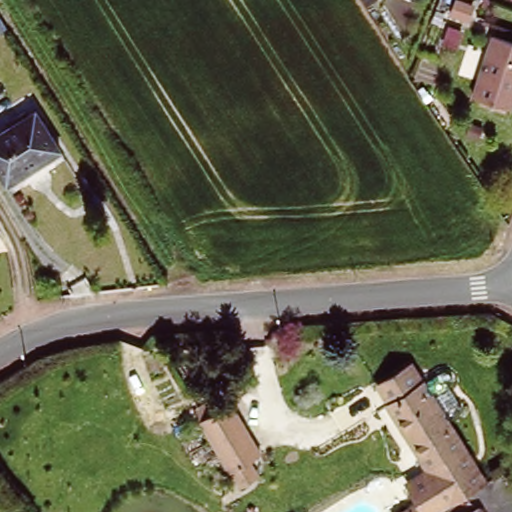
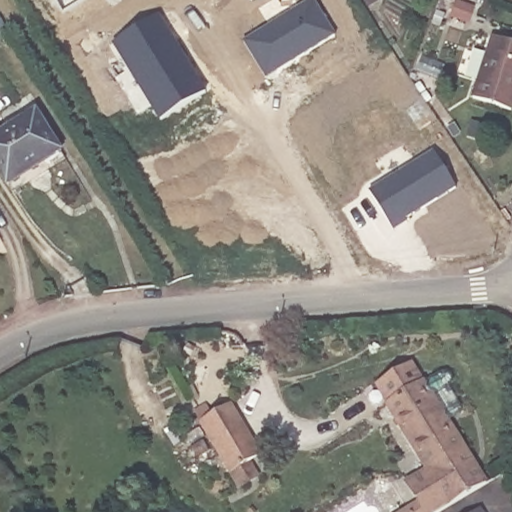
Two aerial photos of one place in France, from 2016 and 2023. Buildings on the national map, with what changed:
new [(266,78),(243,42),(310,0),(313,0),(336,35),(266,78)]
unchanged [(366,9),(360,0),(377,0),(378,1),(366,9)]
unchanged [(466,21),(451,15),(455,2),(471,7),(466,21)]
new [(158,16),(206,92),(161,120),(113,43),(158,16)]
unchanged [(509,111),(472,98),(492,37),(512,44),(512,100),(509,111)]
unchanged [(6,178),(0,168),(0,129),(35,107),(55,140),(58,146),(43,156),(6,178)]
unchanged [(492,132),(488,145),(475,140),(479,129),(492,132)]
new [(369,191),(434,151),(456,187),(406,218),(408,221),(394,230),(369,191)]
unchanged [(0,233),(1,235),(0,235),(0,233)]
unchanged [(408,479),(428,467),(389,402),(390,401),(378,380),(411,360),(423,379),(443,367),(447,367),(453,377),(449,383),(462,405),(460,411),(447,418),(485,479),(430,512),(395,512),(407,505),(419,498),(408,479)]
unchanged [(258,481),(243,488),(242,485),(235,473),(199,412),(203,410),(210,406),(216,415),(236,404),(252,432),(266,456),(254,462),(263,477),(258,481)]
unchanged [(479,505),(483,512),(467,512),(479,505)]

